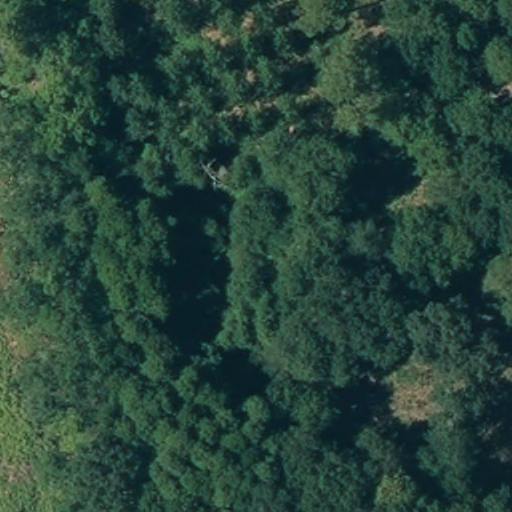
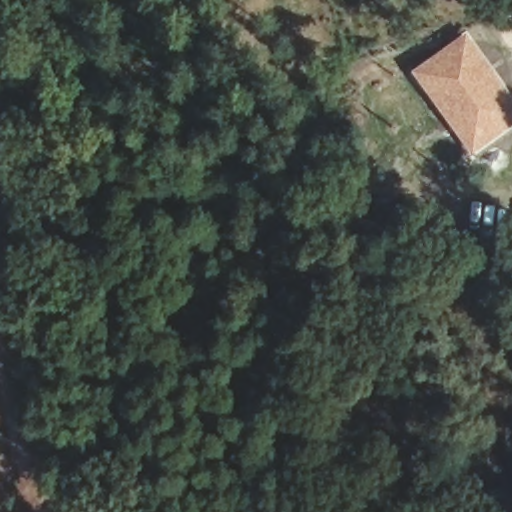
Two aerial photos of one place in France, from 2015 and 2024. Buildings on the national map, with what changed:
new [(467,33),(512,90),(512,119),(487,139),(472,121),(479,116),(434,59),(467,33)]
new [(434,59),(479,116),(472,121),(487,139),(479,145),(419,70),(434,59)]

